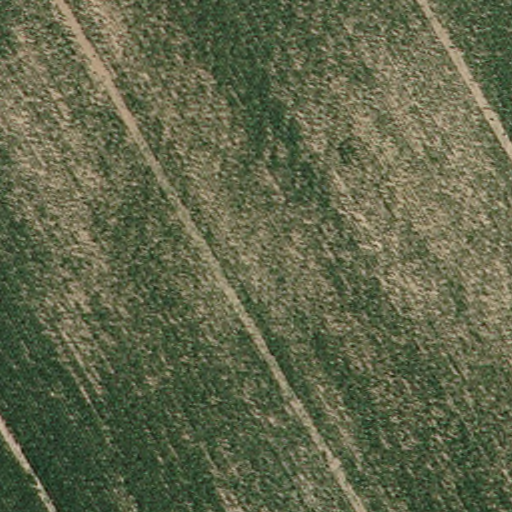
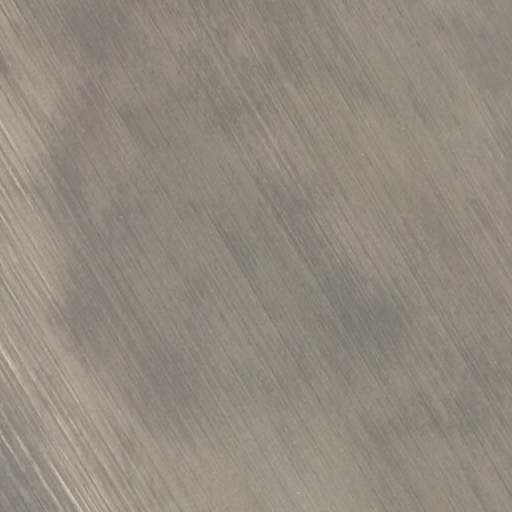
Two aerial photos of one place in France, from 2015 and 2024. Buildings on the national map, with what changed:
[]

